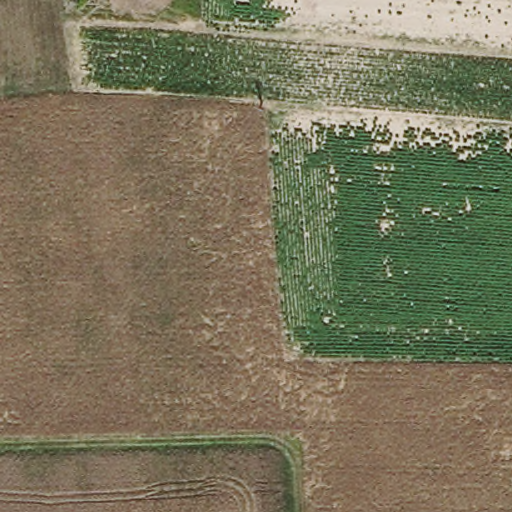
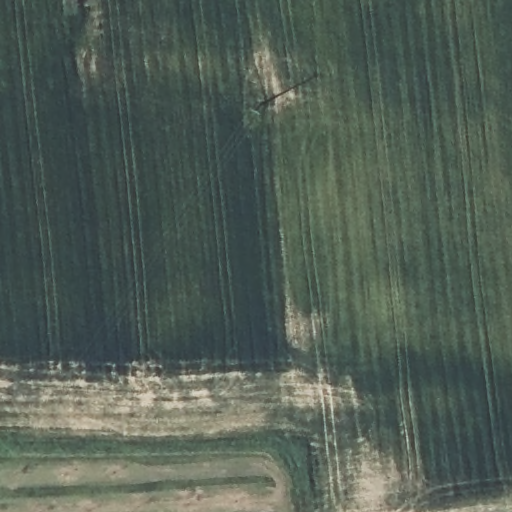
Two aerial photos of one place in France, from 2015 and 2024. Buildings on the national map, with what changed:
[]

